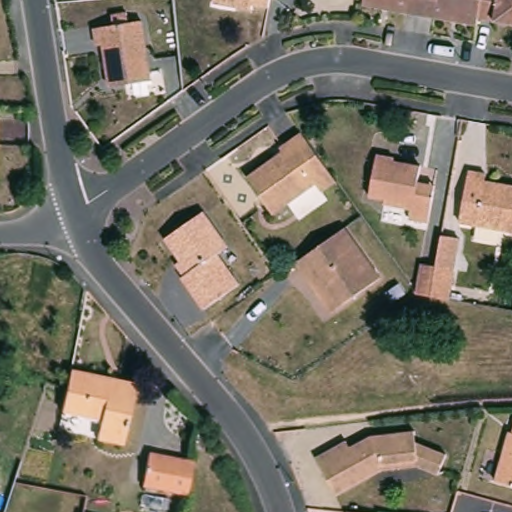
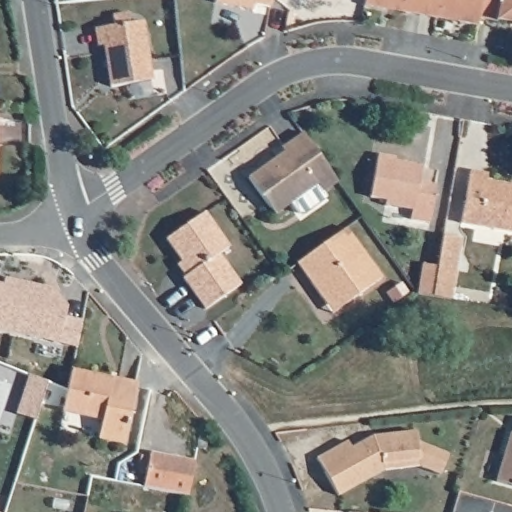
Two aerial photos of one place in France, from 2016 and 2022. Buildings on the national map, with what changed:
unchanged [(256,2),(255,7),(217,2),(218,0),(272,0),(271,4),(256,2)]
unchanged [(365,4),(366,0),(425,0),(422,13),(407,11),(383,7),(365,4)]
unchanged [(422,13),(425,0),(482,0),(479,17),(478,23),(460,20),(436,16),(422,13)]
unchanged [(479,17),(482,0),(512,0),(512,22),(496,19),(479,17)]
unchanged [(111,85),(104,44),(98,45),(95,25),(116,23),(114,14),(129,12),(131,22),(142,20),(152,78),(111,85)]
unchanged [(316,186),(273,215),(247,178),(283,153),(279,147),(288,143),(303,133),(338,181),(321,192),(316,186)]
unchanged [(395,171),(422,176),(419,192),(436,195),(435,199),(430,232),(411,228),(413,219),(386,214),(386,209),(371,206),(378,164),(396,167),(395,171)]
unchanged [(472,170),(486,173),(485,180),(512,185),(512,231),(463,222),(472,170)]
unchanged [(229,246),(218,253),(240,284),(204,310),(181,278),(183,276),(175,265),(180,260),(164,238),(206,212),(229,246)]
unchanged [(321,296),(310,283),(296,262),(303,257),(345,227),(380,277),(346,302),(332,310),(321,296)]
unchanged [(454,268),(449,298),(433,295),(418,292),(423,263),(438,265),(454,268)]
new [(61,343),(0,330),(0,283),(5,284),(7,278),(53,288),(52,295),(62,297),(60,305),(69,307),(67,317),(84,321),(79,347),(61,343)]
unchanged [(62,414),(67,392),(71,373),(114,381),(104,423),(62,414)]
unchanged [(135,385),(123,445),(100,441),(104,423),(114,381),(135,385)]
unchanged [(338,493),(318,455),(349,439),(352,445),(364,439),(381,438),(380,434),(418,429),(418,441),(448,454),(440,474),(419,465),(384,468),(338,493)]
unchanged [(496,479),(510,430),(512,431),(512,484),(496,479)]
unchanged [(151,455),(195,463),(188,497),(144,488),(151,455)]

